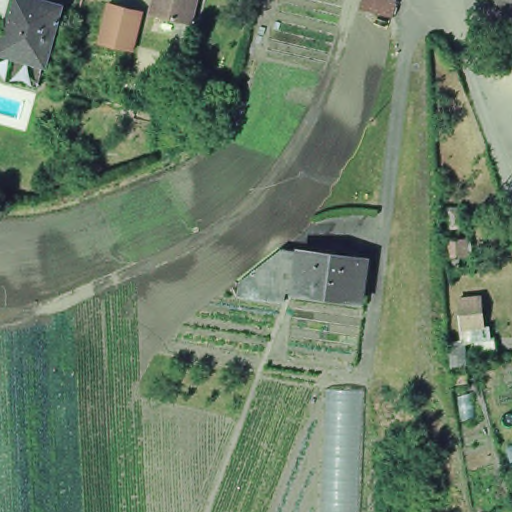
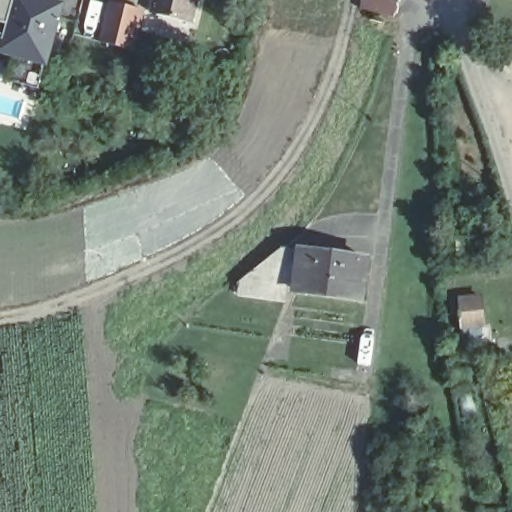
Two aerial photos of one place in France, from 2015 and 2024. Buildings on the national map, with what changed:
unchanged [(14,76),(12,72),(12,68),(16,54),(1,51),(9,24),(10,20),(0,17),(0,0),(45,0),(62,4),(46,62),(45,62),(38,85),(20,80),(16,79),(14,76)]
unchanged [(152,13),(155,0),(199,0),(194,23),(152,13)]
unchanged [(394,18),(362,9),(364,0),(399,0),(394,18)]
unchanged [(145,11),(137,39),(135,50),(101,41),(103,32),(110,2),(145,11)]
unchanged [(460,206),(462,224),(452,226),(450,208),(460,206)]
unchanged [(452,239),(472,237),(472,252),(452,254),(447,254),(447,251),(447,239),(452,239)]
unchanged [(237,294),(239,284),(237,283),(232,283),(277,246),(284,248),(297,250),(292,291),(282,289),(280,300),(237,294)]
unchanged [(297,250),(312,252),(329,254),(362,259),(356,300),(315,294),(294,291),(292,291),(297,250)]
unchanged [(490,324),(492,337),(464,340),(459,298),(480,296),(484,325),(490,324)]
unchanged [(455,381),(453,367),(450,342),(464,340),(467,365),(469,379),(455,381)]
unchanged [(448,342),(448,362),(431,362),(430,343),(448,342)]
demolished [(359,512),(325,512),(332,388),(365,391),(359,512)]

